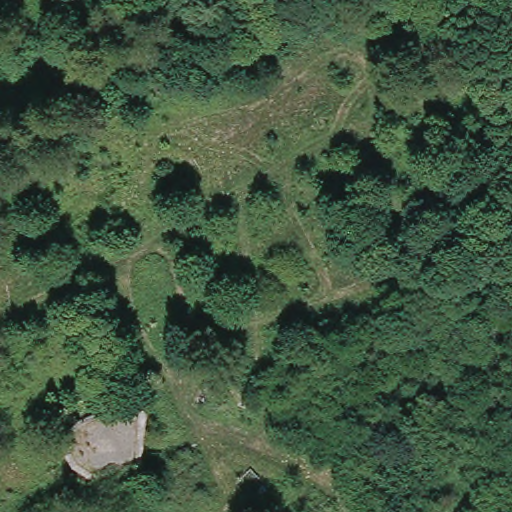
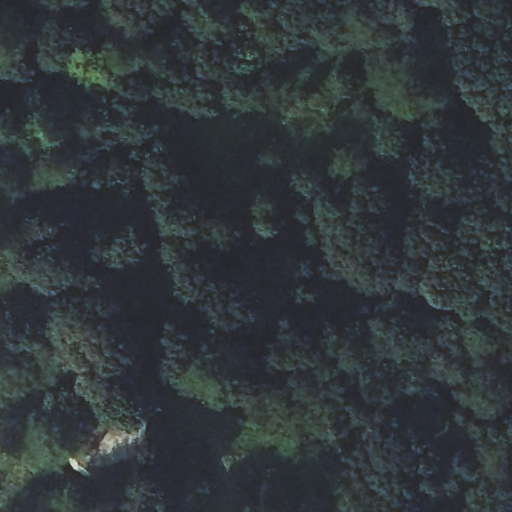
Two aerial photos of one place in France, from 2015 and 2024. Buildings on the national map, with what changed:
unchanged [(291,373),(270,402),(247,386),(267,355),(291,373)]
unchanged [(78,461),(70,449),(72,423),(86,413),(126,412),(135,402),(147,403),(136,479),(78,461)]

